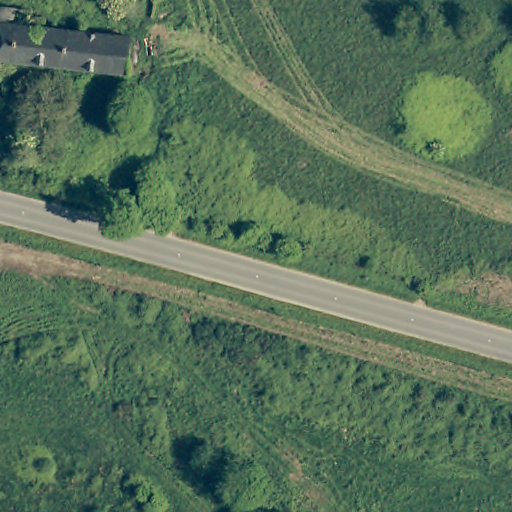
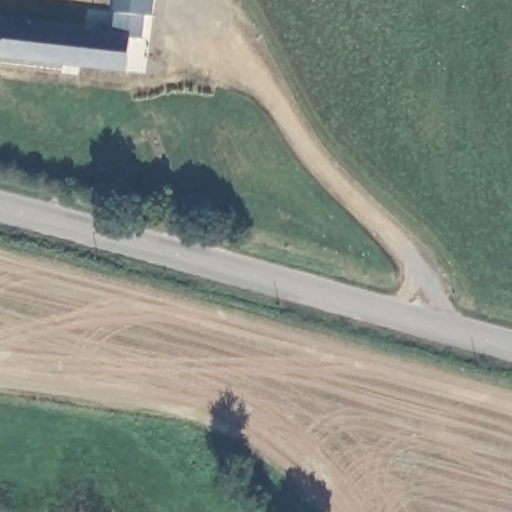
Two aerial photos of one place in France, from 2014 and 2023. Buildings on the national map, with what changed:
new [(155,0),(153,16),(145,15),(143,38),(130,34),(115,33),(118,0),(155,0)]
unchanged [(127,70),(0,56),(0,5),(24,9),(23,15),(56,20),(55,25),(130,34),(127,70)]

